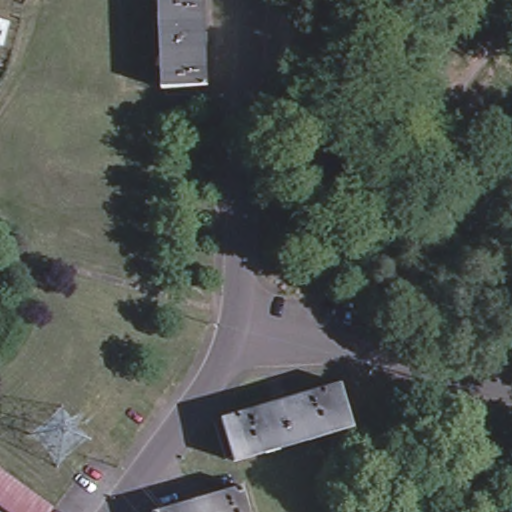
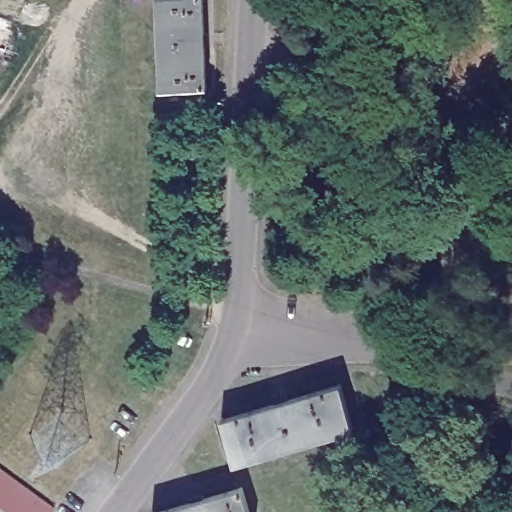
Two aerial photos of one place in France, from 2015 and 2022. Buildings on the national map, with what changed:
unchanged [(157,0),(201,0),(206,83),(162,85),(157,0)]
unchanged [(341,379),(354,423),(235,459),(222,414),(341,379)]
unchanged [(15,512),(0,501),(0,468),(53,506),(49,512),(15,512)]
unchanged [(248,512),(162,512),(242,489),(248,512)]

